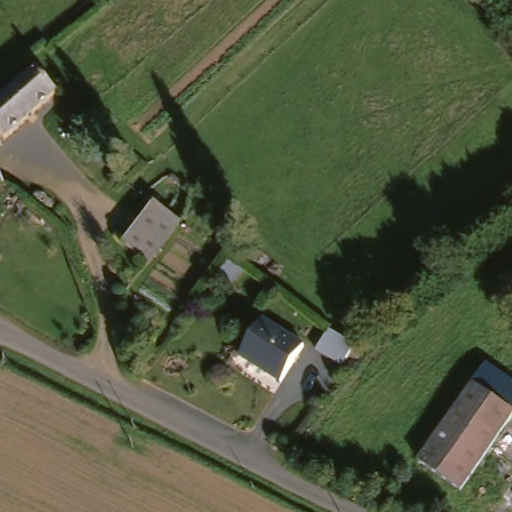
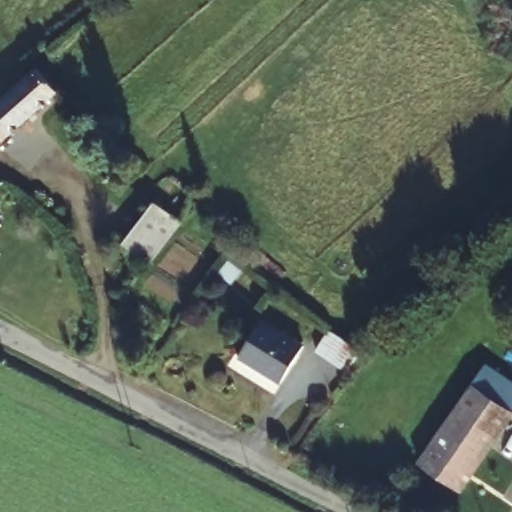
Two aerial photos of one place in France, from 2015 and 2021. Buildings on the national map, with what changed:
unchanged [(0,145),(0,105),(37,73),(54,93),(0,145)]
unchanged [(123,242),(152,206),(178,229),(151,259),(148,263),(123,242)]
unchanged [(282,387),(243,361),(265,328),(304,353),(282,387)]
unchanged [(339,368),(316,350),(331,329),(354,346),(339,368)]
unchanged [(512,388),(512,414),(492,442),(454,413),(484,368),(512,388)]
unchanged [(492,442),(458,490),(416,468),(454,413),(492,442)]

